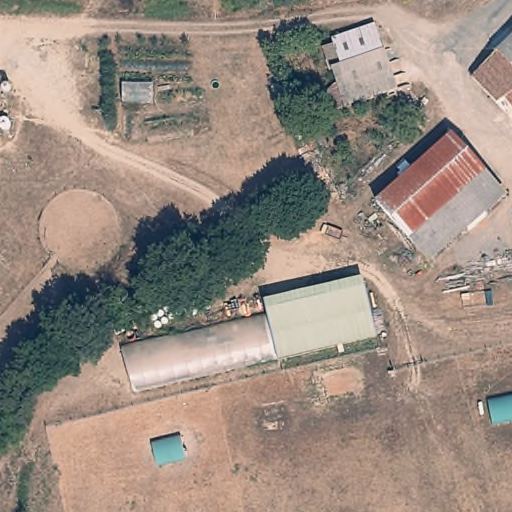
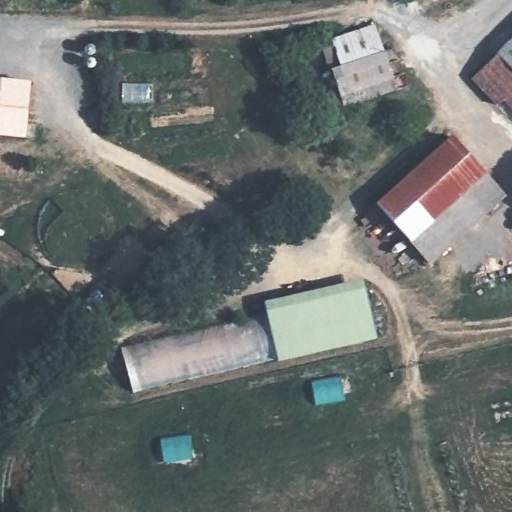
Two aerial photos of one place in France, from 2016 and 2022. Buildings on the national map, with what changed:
unchanged [(342,104),(338,105),(330,79),(343,75),(331,35),(376,21),(397,89),(342,104)]
unchanged [(508,97),(501,105),(478,79),(512,48),(512,102),(508,97)]
new [(24,141),(0,138),(0,77),(29,80),(24,141)]
unchanged [(0,92),(0,78),(1,79),(0,92)]
unchanged [(429,265),(381,204),(389,197),(460,142),(509,202),(497,211),(429,265)]
unchanged [(278,362),(278,360),(268,314),(265,302),(364,280),(377,340),(278,362)]
unchanged [(133,393),(123,348),(268,314),(278,360),(133,393)]

